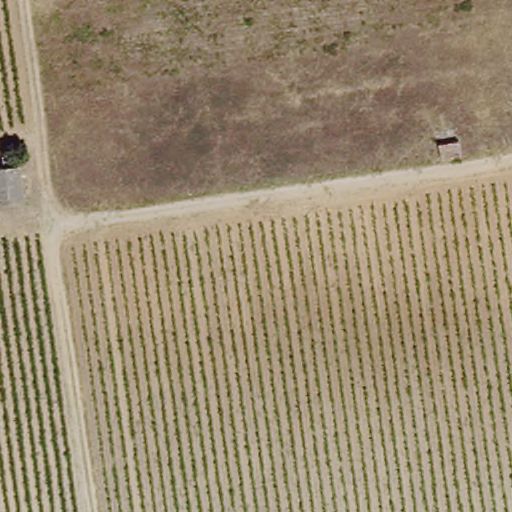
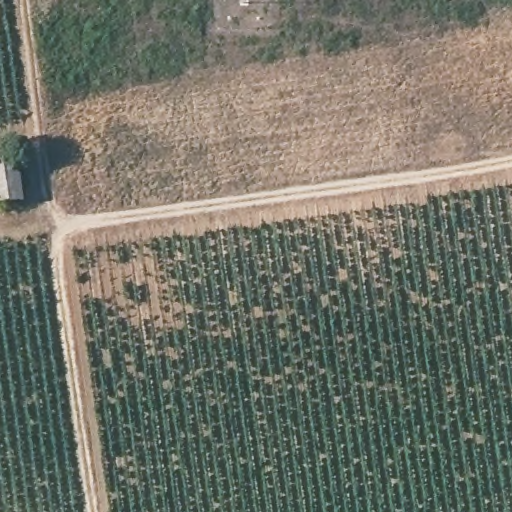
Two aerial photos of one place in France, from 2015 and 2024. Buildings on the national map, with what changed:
unchanged [(462,160),(443,163),(442,148),(460,145),(462,160)]
unchanged [(3,174),(0,161),(17,159),(24,204),(0,209),(0,174),(3,174)]

